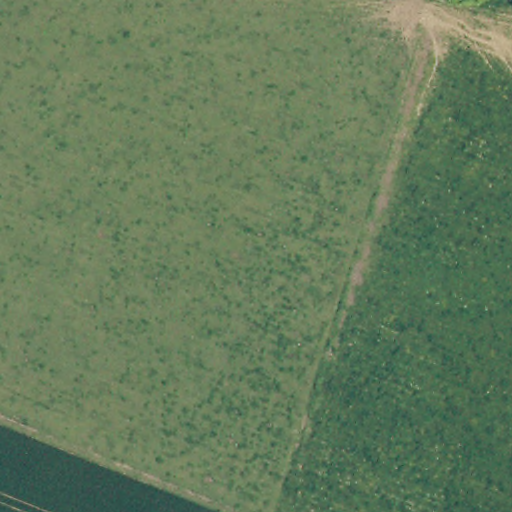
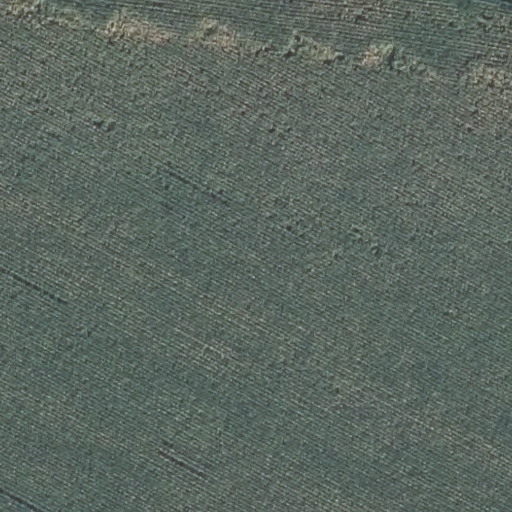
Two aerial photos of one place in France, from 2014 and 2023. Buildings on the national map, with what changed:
[]

